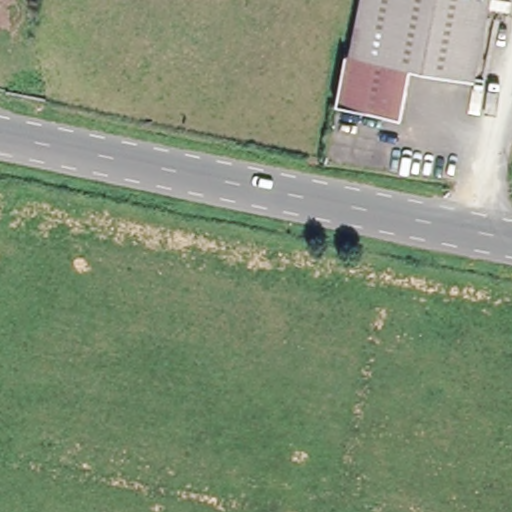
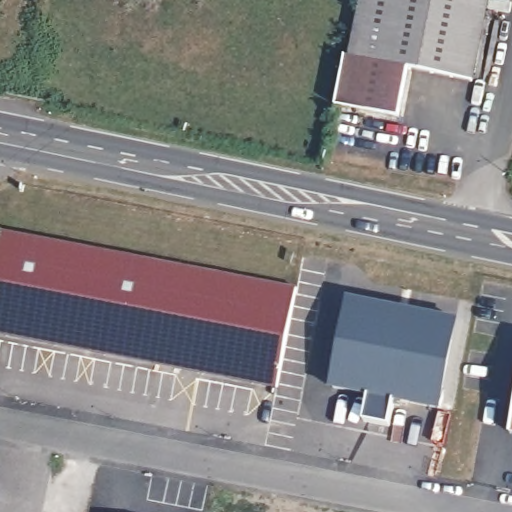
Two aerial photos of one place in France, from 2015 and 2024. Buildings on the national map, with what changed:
unchanged [(475,86),(406,72),(396,121),(333,108),(343,60),(348,61),(361,0),(490,0),(475,86)]
new [(297,285),(277,386),(0,335),(0,228),(297,285)]
new [(330,388),(347,296),(459,318),(440,409),(330,388)]
new [(512,422),(512,435),(510,434),(512,422)]

